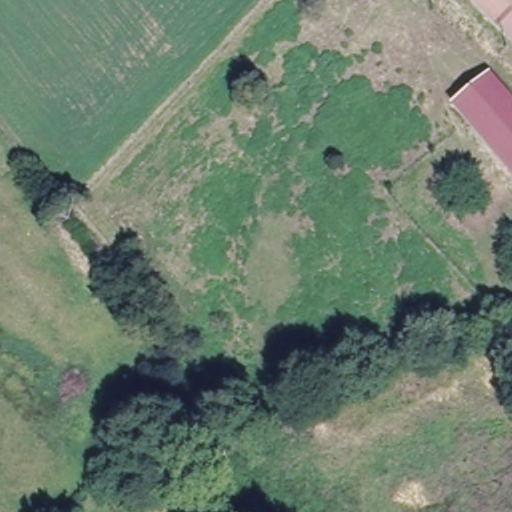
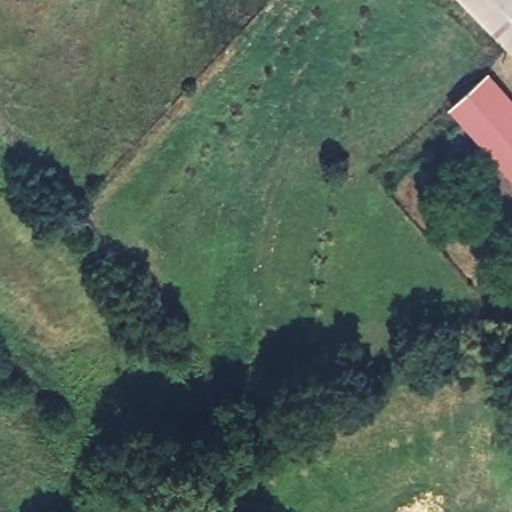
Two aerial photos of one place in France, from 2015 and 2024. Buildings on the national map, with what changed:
unchanged [(473,0),(512,0),(512,43),(473,0)]
unchanged [(468,120),(504,89),(512,99),(512,168),(468,120)]

